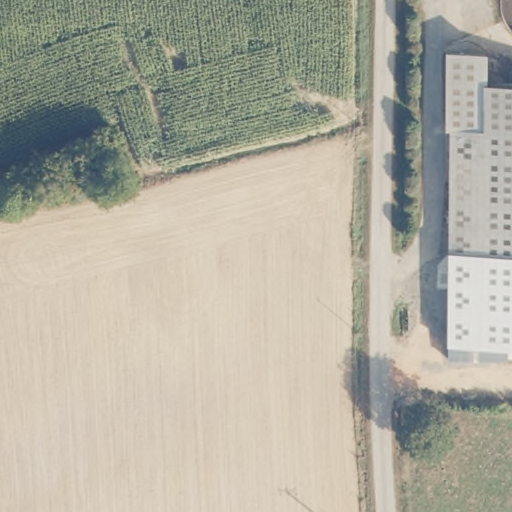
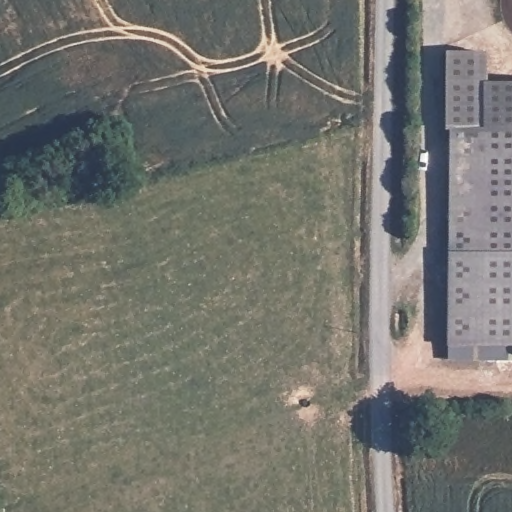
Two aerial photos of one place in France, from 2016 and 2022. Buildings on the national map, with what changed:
unchanged [(487,53),(487,83),(512,83),(512,121),(446,120),(446,52),(487,53)]
unchanged [(446,120),(512,121),(512,248),(446,247),(446,120)]
unchanged [(512,351),(508,361),(449,361),(448,346),(450,247),(512,248),(512,351)]

